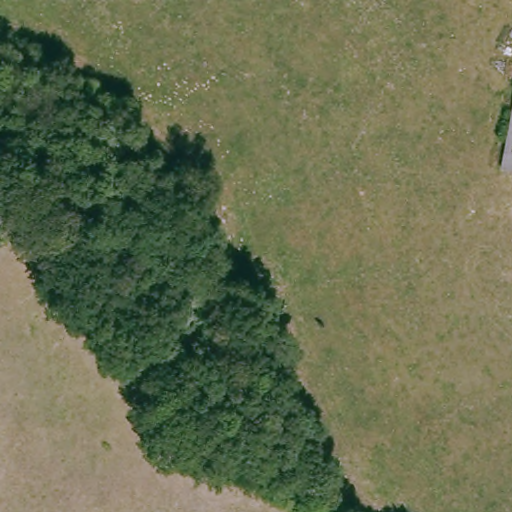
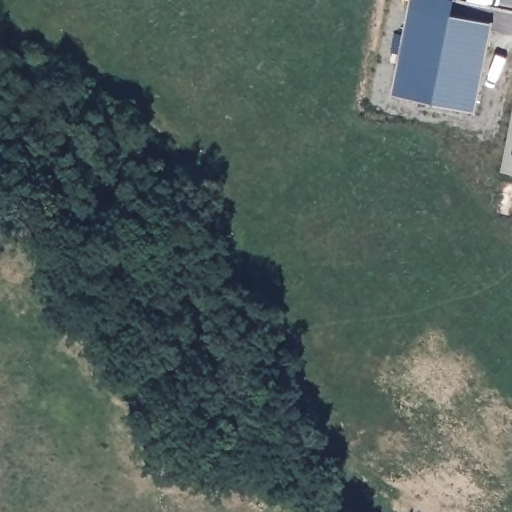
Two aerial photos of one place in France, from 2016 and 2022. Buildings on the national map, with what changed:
new [(477,110),(394,94),(413,0),(454,0),(451,15),(494,22),(477,110)]
unchanged [(501,162),(512,109),(512,165),(501,162)]

